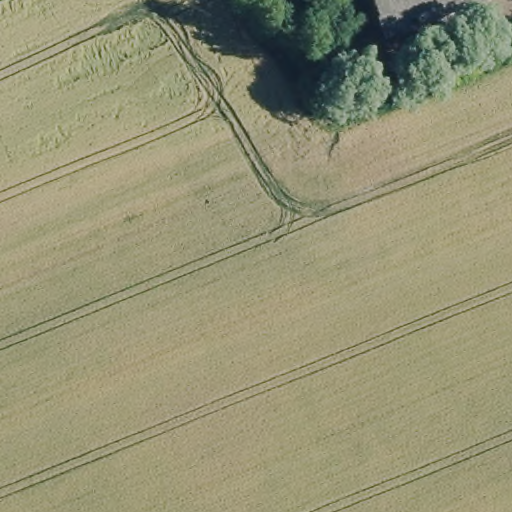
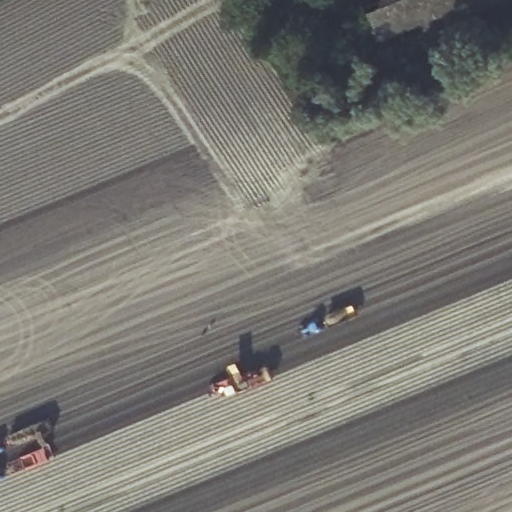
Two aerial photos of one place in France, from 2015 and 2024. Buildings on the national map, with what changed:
unchanged [(503,0),(386,46),(367,0),(503,0)]

